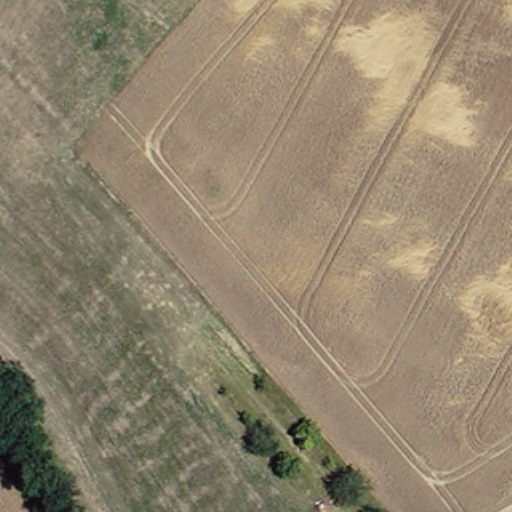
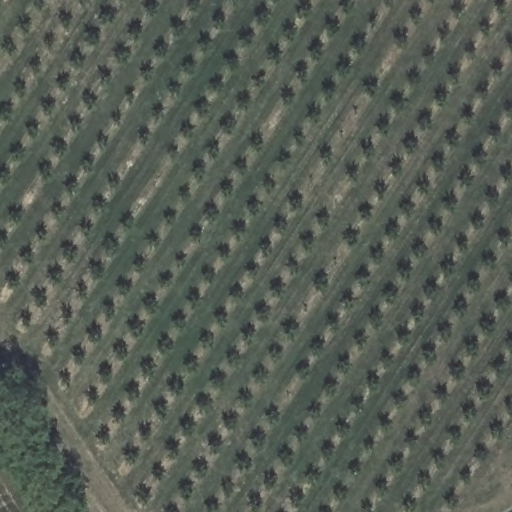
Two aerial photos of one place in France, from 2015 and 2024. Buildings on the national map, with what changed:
[]

